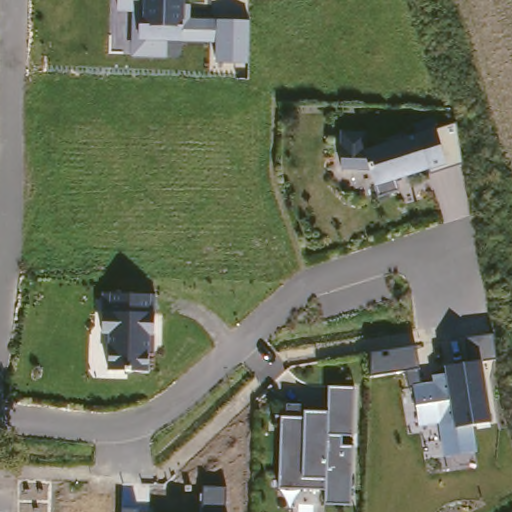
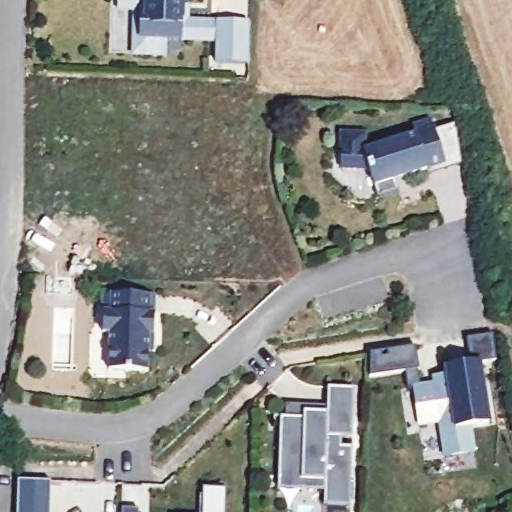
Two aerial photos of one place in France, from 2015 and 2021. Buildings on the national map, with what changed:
unchanged [(131,12),(116,11),(117,0),(185,0),(185,5),(190,5),(190,18),(248,20),(248,63),(214,63),(214,43),(165,42),(165,59),(130,58),(131,12)]
unchanged [(375,196),(367,168),(340,169),(339,132),(368,133),(372,147),(415,134),(412,125),(431,118),(446,164),(393,183),(393,190),(375,196)]
unchanged [(109,334),(100,333),(102,294),(154,297),(151,373),(108,370),(109,334)]
unchanged [(444,457),(439,424),(418,428),(413,387),(408,387),(404,371),(370,376),(371,353),(417,347),(422,384),(434,383),(432,375),(445,374),(444,366),(465,363),(462,339),(493,334),(497,360),(481,363),(489,423),(472,427),(476,453),(444,457)]
unchanged [(280,417),(285,417),(284,403),(326,404),(326,388),(354,387),(351,436),(342,436),(340,447),(353,448),(350,506),(324,504),(324,489),(279,488),(280,417)]
new [(53,488),(51,512),(18,512),(19,486),(53,488)]
unchanged [(226,488),(226,512),(202,512),(203,488),(226,488)]
unchanged [(138,510),(138,512),(121,512),(121,510),(138,510)]

